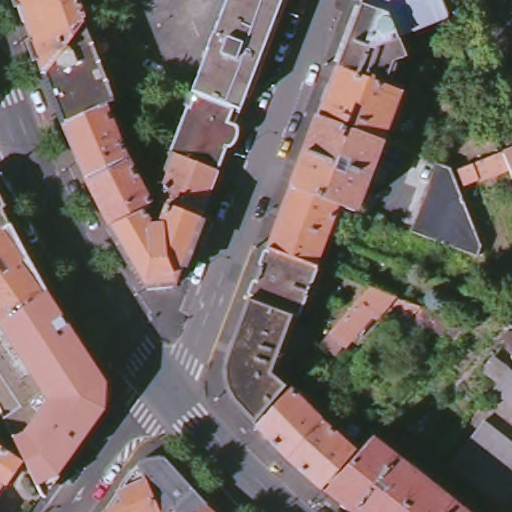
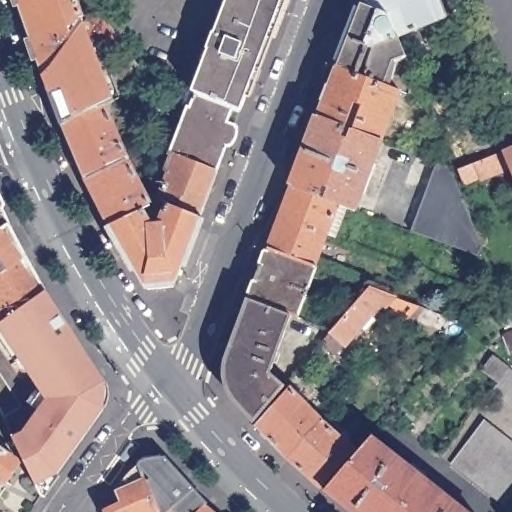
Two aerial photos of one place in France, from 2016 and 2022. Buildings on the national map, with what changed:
unchanged [(46,75),(20,0),(75,0),(83,23),(46,75)]
unchanged [(205,49),(212,33),(215,34),(227,0),(283,0),(241,111),(197,95),(192,94),(209,50),(205,49)]
unchanged [(397,39),(389,16),(362,5),(364,0),(442,0),(449,17),(397,39)]
unchanged [(127,50),(99,61),(83,23),(95,5),(127,50)]
unchanged [(384,87),(337,69),(362,5),(389,16),(397,39),(406,60),(394,65),(384,87)]
unchanged [(83,23),(99,61),(114,101),(103,106),(65,124),(46,75),(83,23)]
unchanged [(134,56),(147,86),(119,99),(106,69),(134,56)]
unchanged [(354,132),(363,107),(356,105),(347,130),(319,120),(337,69),(384,87),(400,94),(400,95),(381,143),(354,132)]
unchanged [(187,110),(190,110),(197,95),(241,111),(218,172),(173,156),(187,110)]
unchanged [(89,180),(81,163),(71,145),(73,144),(65,124),(103,106),(127,161),(89,180)]
unchanged [(377,165),(365,195),(362,194),(355,211),(338,205),(292,188),(319,120),(347,130),(354,132),(381,143),(374,165),(377,165)]
unchanged [(465,181),(459,166),(504,147),(505,150),(512,148),(512,167),(510,163),(465,181)]
unchanged [(167,174),(173,156),(218,172),(200,219),(161,204),(171,175),(167,174)]
unchanged [(451,164),(452,169),(487,251),(486,251),(484,254),(412,227),(435,159),(451,164)]
unchanged [(112,225),(89,180),(127,161),(151,208),(112,225)]
unchanged [(280,219),(292,188),(338,205),(327,236),(280,219)]
unchanged [(151,208),(161,204),(200,219),(175,287),(149,290),(112,225),(151,208)]
unchanged [(11,230),(0,238),(0,207),(11,230)]
unchanged [(269,249),(280,219),(327,236),(315,266),(269,249)]
unchanged [(11,230),(16,240),(46,295),(4,325),(0,325),(0,238),(11,230)]
unchanged [(292,316),(250,300),(269,249),(315,266),(319,268),(300,320),(292,316)]
unchanged [(372,325),(369,321),(347,345),(332,332),(370,287),(422,306),(409,321),(390,304),(372,325)]
unchanged [(37,489),(5,421),(22,410),(0,379),(0,328),(4,325),(46,295),(57,313),(69,331),(105,387),(105,412),(57,478),(42,500),(37,489)]
unchanged [(270,374),(285,387),(255,423),(234,398),(226,380),(226,362),(230,351),(250,300),(292,316),(270,374)]
unchanged [(512,370),(512,404),(496,391),(512,370)]
unchanged [(302,398),(305,395),(310,400),(317,392),(333,408),(332,409),(289,458),(258,427),(292,390),(302,398)]
unchanged [(340,415),(330,427),(353,448),(321,487),(289,458),(332,409),(340,415)]
unchanged [(512,442),(512,500),(507,507),(452,464),(486,422),(512,442)]
unchanged [(326,491),(372,440),(465,512),(352,512),(326,491)]
unchanged [(20,465),(7,485),(5,482),(0,489),(0,451),(20,465)]
unchanged [(137,469),(139,465),(166,463),(207,508),(205,511),(204,512),(155,512),(137,469)]
unchanged [(137,469),(155,512),(106,512),(137,469)]
unchanged [(205,511),(206,512),(204,512),(205,511)]

